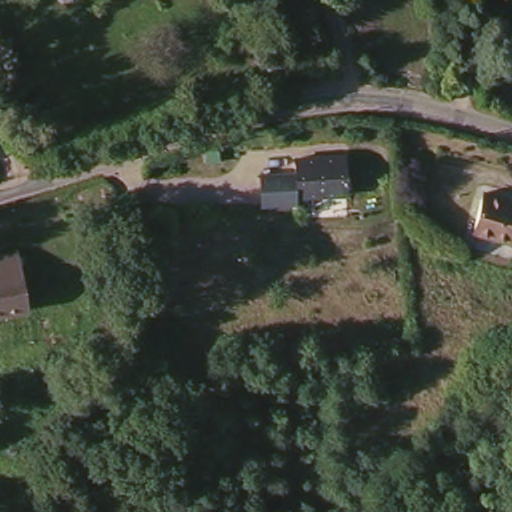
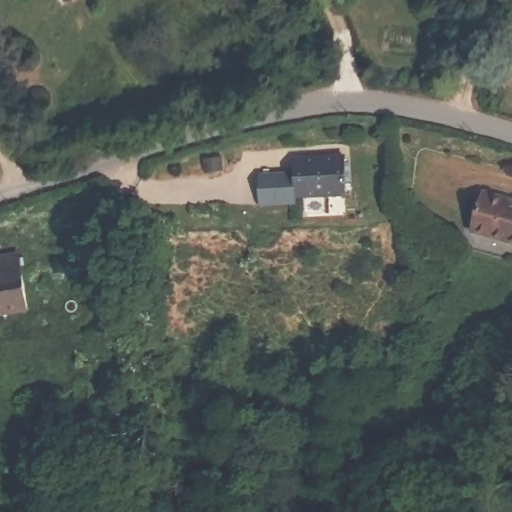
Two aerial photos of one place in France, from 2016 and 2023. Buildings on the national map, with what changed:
unchanged [(344,195),(298,198),(298,203),(265,206),(264,177),(297,175),(297,157),(343,155),(344,195)]
unchanged [(512,241),(473,231),(483,192),(512,199),(512,241)]
unchanged [(0,272),(0,248),(18,245),(21,266),(0,272)]
unchanged [(28,301),(0,308),(0,272),(21,266),(28,301)]

